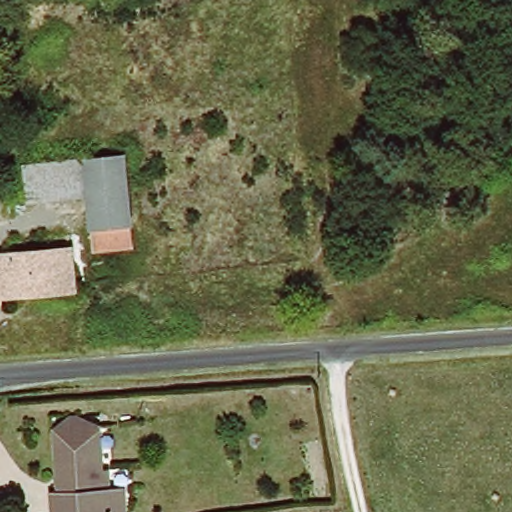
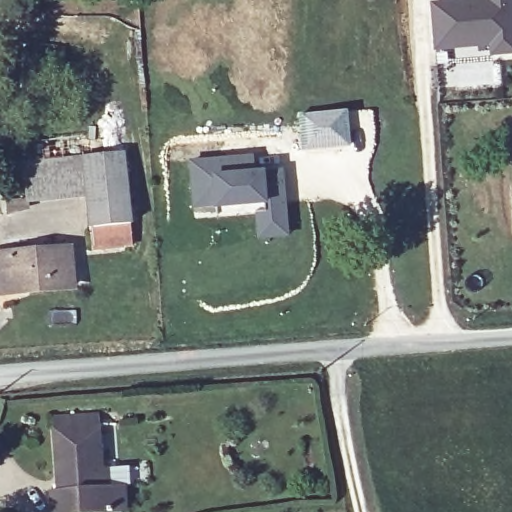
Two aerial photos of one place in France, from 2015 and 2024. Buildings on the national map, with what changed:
new [(449,2),(449,7),(487,5),(487,0),(511,0),(512,12),(512,54),(491,56),(490,40),(452,43),(452,48),(435,49),(432,4),(449,2)]
new [(345,115),(347,149),(302,152),(300,118),(345,115)]
unchanged [(97,254),(96,236),(91,203),(87,164),(124,159),(130,233),(134,251),(97,254)]
new [(252,159),(253,176),(282,174),(284,213),(263,214),(263,206),(216,210),(215,206),(194,207),(191,162),(252,159)]
unchanged [(29,210),(28,199),(27,171),(54,167),(87,164),(91,203),(29,210)]
new [(263,206),(263,214),(284,213),(286,242),(256,244),(255,219),(216,221),(216,210),(263,206)]
unchanged [(74,280),(74,291),(0,298),(0,258),(16,257),(15,262),(77,255),(80,279),(74,280)]
unchanged [(107,469),(115,467),(117,488),(129,489),(130,512),(55,512),(54,492),(70,492),(68,478),(60,478),(59,427),(105,424),(107,469)]

